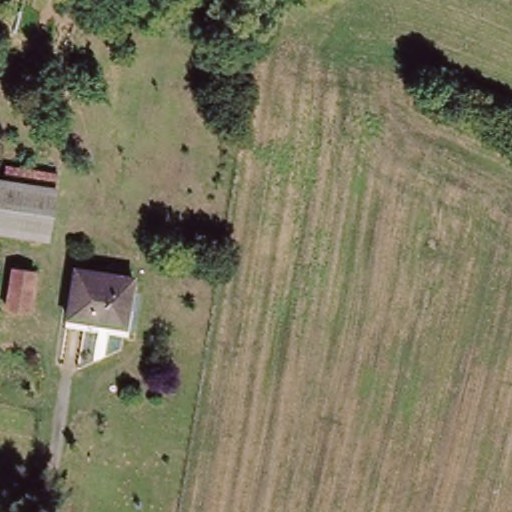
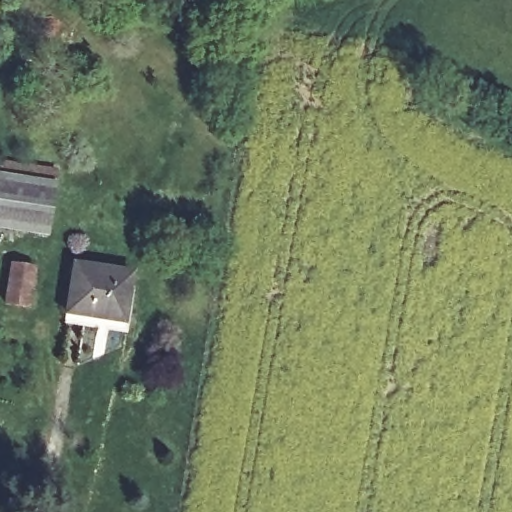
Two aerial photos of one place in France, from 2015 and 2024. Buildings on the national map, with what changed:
unchanged [(7,157),(61,165),(54,230),(32,228),(0,223),(0,173),(6,173),(7,157)]
unchanged [(36,268),(30,306),(8,302),(13,266),(36,268)]
unchanged [(132,277),(124,324),(69,313),(76,268),(132,277)]

